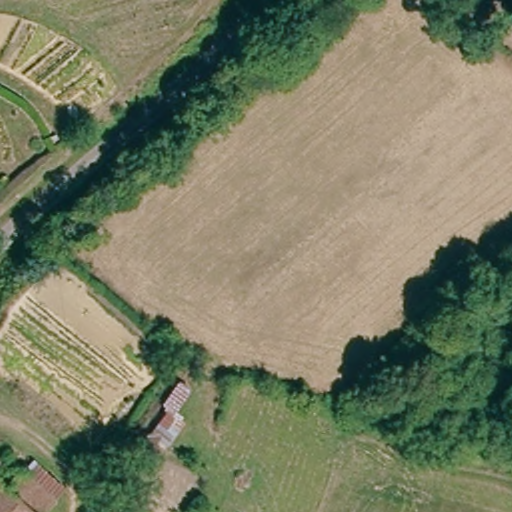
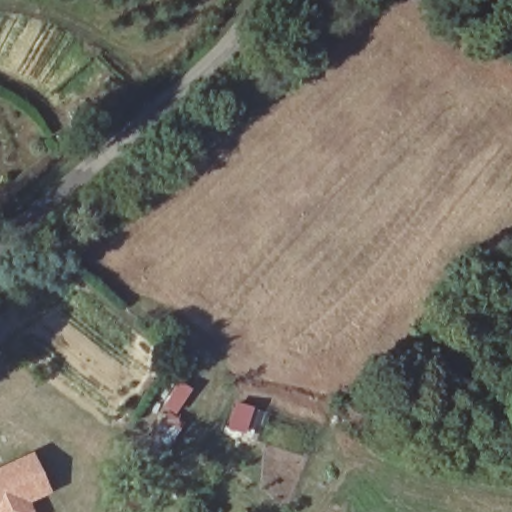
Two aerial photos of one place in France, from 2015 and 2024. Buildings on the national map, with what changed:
new [(31,500),(35,512),(0,512),(0,465),(32,451),(50,493),(31,500)]
demolished [(0,512),(0,470),(1,471),(44,508),(49,512),(0,512)]

